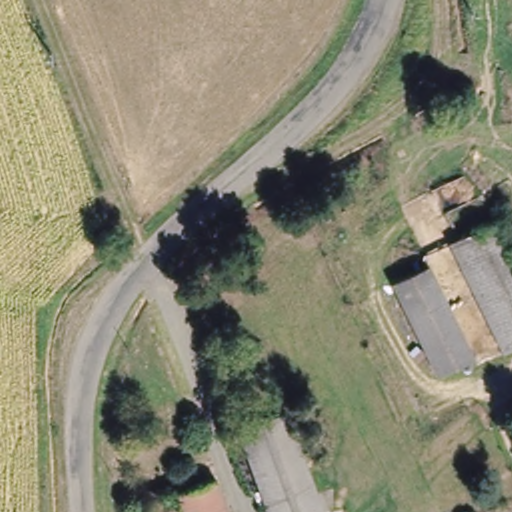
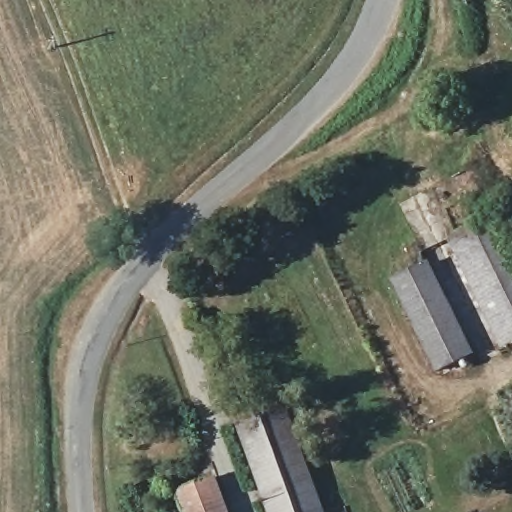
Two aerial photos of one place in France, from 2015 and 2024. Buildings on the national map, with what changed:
unchanged [(512,271),(512,344),(506,348),(447,243),(485,222),(512,271)]
unchanged [(472,355),(437,372),(393,279),(427,263),(472,355)]
unchanged [(247,418),(296,404),(299,416),(327,512),(275,512),(250,430),(247,418)]
unchanged [(215,480),(226,512),(185,512),(179,493),(215,480)]

